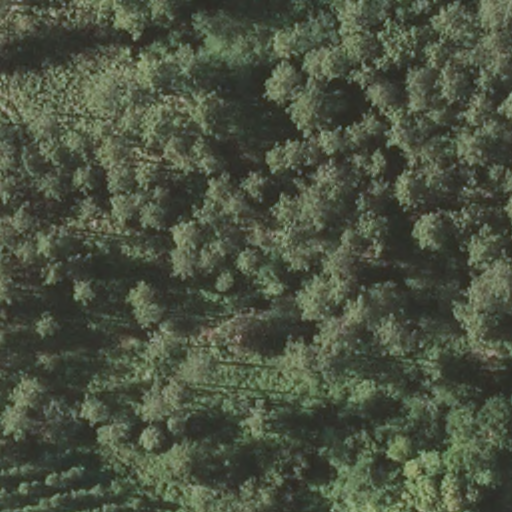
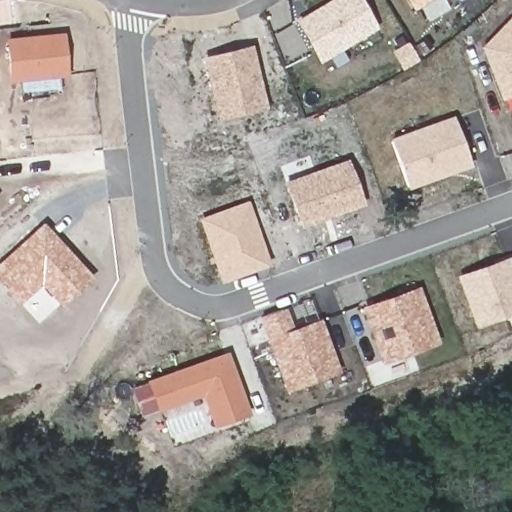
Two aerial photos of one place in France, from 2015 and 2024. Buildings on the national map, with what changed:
new [(325,0),(360,0),(377,29),(316,62),(291,20),(325,0)]
new [(413,11),(406,0),(433,0),(413,11)]
new [(502,100),(483,45),(512,15),(512,96),(502,100)]
new [(64,34),(70,75),(11,82),(6,40),(64,34)]
new [(202,56),(251,44),(267,109),(219,121),(202,56)]
new [(452,118),(467,163),(404,185),(389,140),(452,118)]
new [(348,159),(365,205),(302,228),(285,183),(348,159)]
new [(270,265),(221,282),(199,217),(248,201),(270,265)]
new [(92,276),(59,306),(40,285),(19,304),(0,283),(0,262),(43,222),(92,276)]
new [(458,275),(508,256),(512,268),(512,314),(477,327),(458,275)]
new [(417,286),(435,341),(377,364),(357,307),(417,286)]
new [(316,318),(335,373),(280,391),(262,339),(316,318)]
new [(223,352),(243,410),(206,425),(195,396),(153,408),(143,380),(223,352)]

